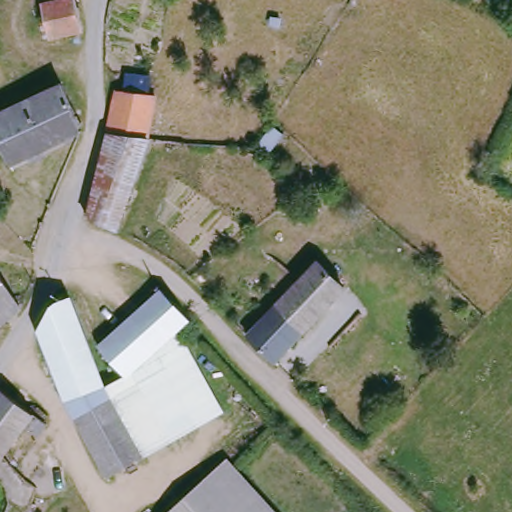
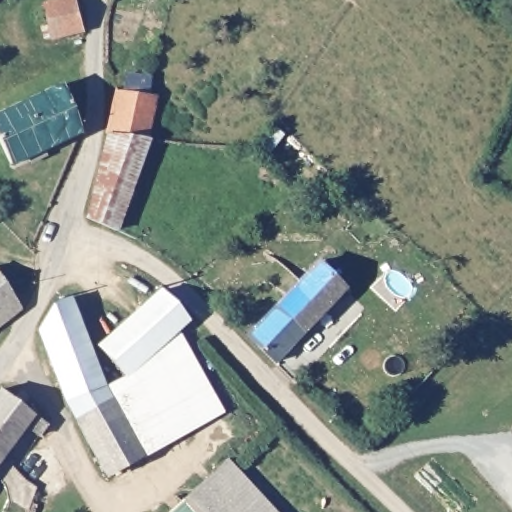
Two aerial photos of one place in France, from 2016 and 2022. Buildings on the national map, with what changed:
unchanged [(48,6),(73,0),(77,0),(84,29),(55,38),(48,6)]
unchanged [(154,95),(149,137),(107,133),(116,89),(154,95)]
unchanged [(14,162),(0,140),(0,130),(67,91),(83,119),(82,121),(14,162)]
unchanged [(117,230),(91,215),(107,133),(149,137),(117,230)]
unchanged [(326,260),(352,285),(279,364),(250,337),(326,260)]
unchanged [(26,309),(0,328),(0,273),(26,309)]
unchanged [(72,295),(107,382),(74,396),(46,324),(61,299),(72,295)]
unchanged [(167,296),(193,324),(178,337),(129,379),(105,349),(167,296)]
unchanged [(178,337),(227,407),(146,454),(113,393),(129,379),(178,337)]
unchanged [(107,382),(113,393),(146,454),(113,473),(79,409),(74,396),(107,382)]
unchanged [(30,512),(13,503),(11,488),(0,475),(0,395),(4,390),(36,415),(50,427),(39,442),(27,431),(5,459),(33,486),(30,512)]
unchanged [(233,462),(278,512),(178,512),(233,462)]

